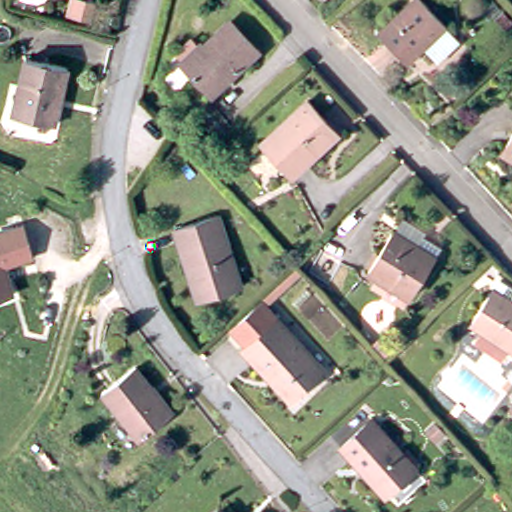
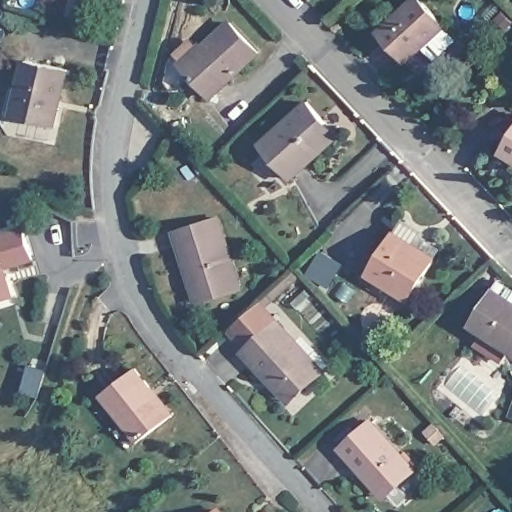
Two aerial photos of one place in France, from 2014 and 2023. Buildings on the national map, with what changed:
unchanged [(402,53),(377,28),(406,0),(424,0),(457,34),(435,55),(421,41),(406,56),(402,53)]
unchanged [(255,53),(207,98),(179,68),(225,23),(255,53)]
unchanged [(65,62),(54,120),(13,111),(25,55),(65,62)]
unchanged [(266,144),(313,101),(333,123),(345,135),(340,139),(297,178),(266,144)]
unchanged [(502,143),(512,129),(512,155),(500,147),(502,143)]
unchanged [(399,213),(418,224),(422,232),(435,240),(431,248),(407,290),(365,265),(390,224),(391,225),(399,213)]
unchanged [(186,271),(172,229),(215,215),(238,286),(200,298),(196,300),(186,271)]
unchanged [(34,262),(7,270),(12,297),(0,301),(0,231),(22,225),(34,262)]
unchanged [(470,319),(489,291),(492,287),(512,301),(512,349),(470,319)]
unchanged [(267,381),(238,351),(272,319),(321,372),(292,401),(288,404),(267,381)]
unchanged [(171,412),(137,438),(120,417),(99,391),(134,365),(171,412)]
new [(30,366),(46,370),(39,396),(22,391),(30,366)]
unchanged [(382,490),(342,446),(372,418),(416,466),(399,482),(385,494),(382,490)]
unchanged [(228,512),(202,512),(217,499),(228,512)]

